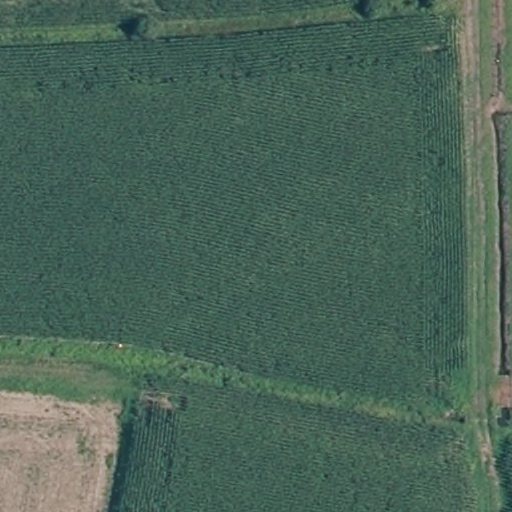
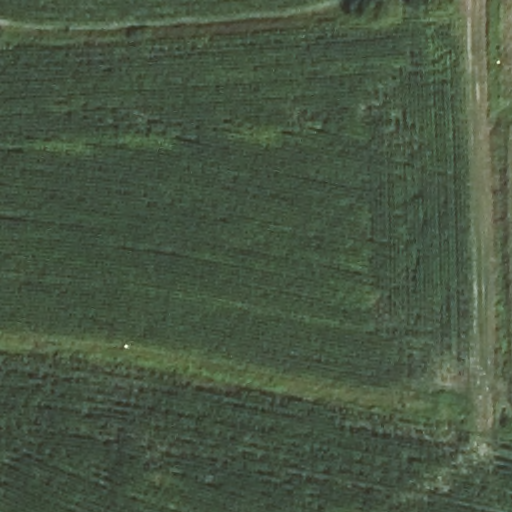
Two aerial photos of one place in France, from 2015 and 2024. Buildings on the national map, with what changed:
[]

